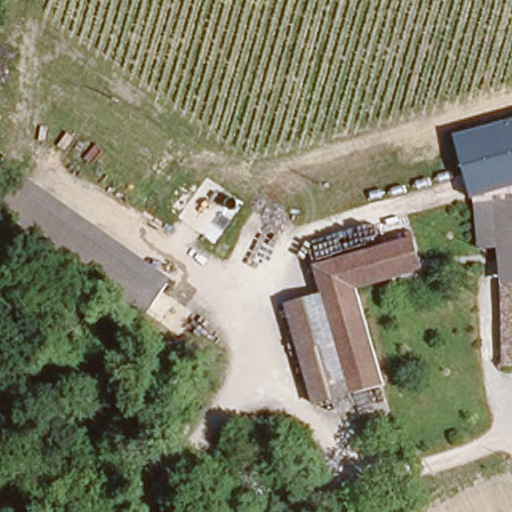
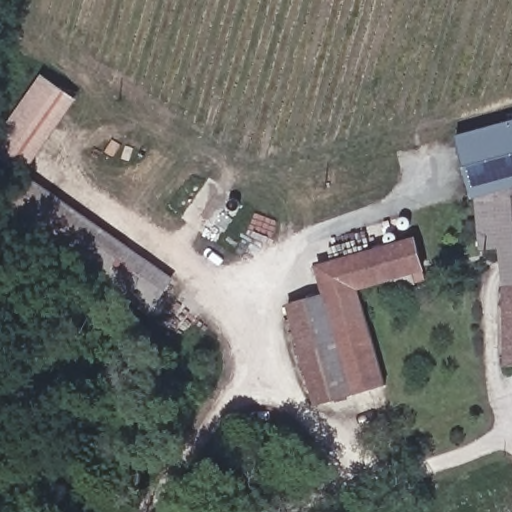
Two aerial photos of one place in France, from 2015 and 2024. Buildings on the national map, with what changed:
new [(43,74),(79,100),(29,170),(25,167),(22,172),(0,156),(0,134),(43,74)]
unchanged [(512,191),(483,191),(483,211),(482,244),(500,244),(500,272),(498,248),(479,248),(473,199),(455,135),(512,120),(512,191)]
unchanged [(160,289),(134,322),(0,209),(25,177),(160,289)]
unchanged [(483,191),(512,191),(512,284),(500,285),(500,272),(500,244),(482,244),(483,211),(483,191)]
unchanged [(324,294),(315,264),(408,235),(412,234),(422,264),(355,285),(383,382),(353,392),(324,294)]
unchanged [(500,285),(512,284),(512,363),(501,364),(500,285)]
unchanged [(314,405),(285,308),(324,294),(353,392),(314,405)]

